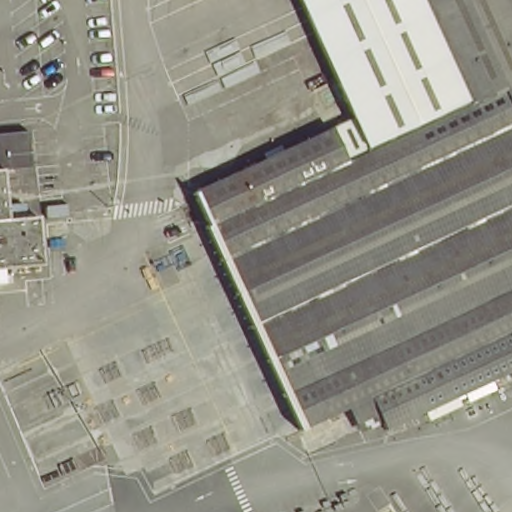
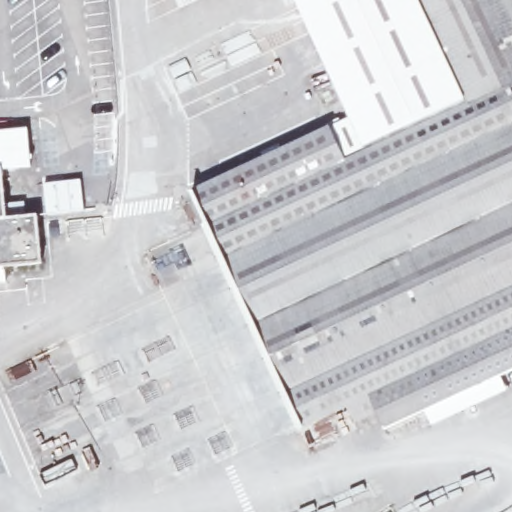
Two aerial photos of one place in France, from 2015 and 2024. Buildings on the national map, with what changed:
unchanged [(187,186),(344,114),(293,0),(503,0),(512,20),(512,365),(380,426),(377,420),(355,430),(349,416),(325,427),(303,437),(187,186)]
unchanged [(26,130),(30,167),(1,170),(5,201),(27,199),(28,215),(38,215),(45,265),(0,268),(0,133),(26,130)]

